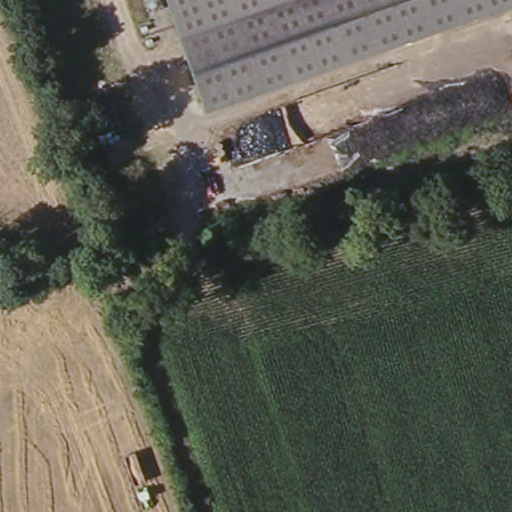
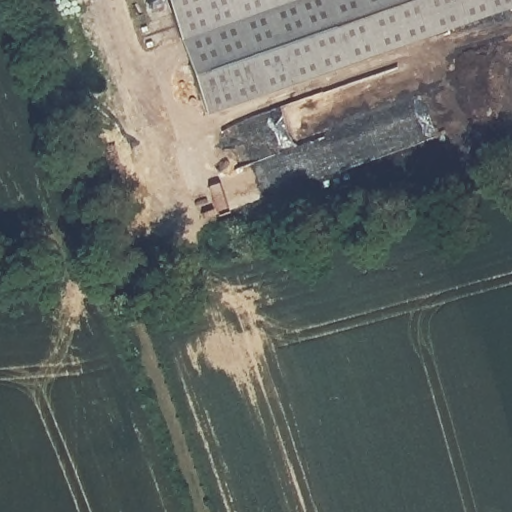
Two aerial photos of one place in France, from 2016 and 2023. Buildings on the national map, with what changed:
unchanged [(173,0),(512,0),(512,8),(202,99),(173,0)]

